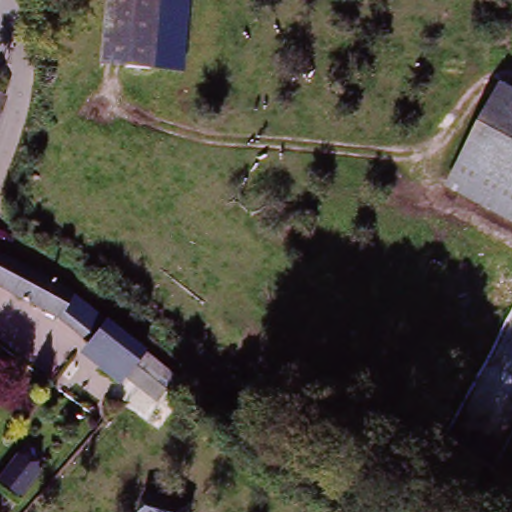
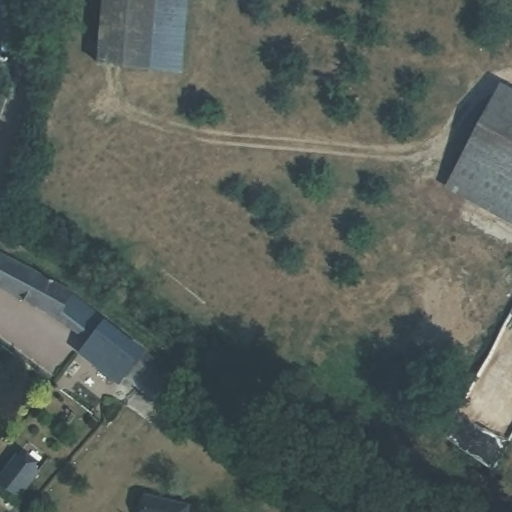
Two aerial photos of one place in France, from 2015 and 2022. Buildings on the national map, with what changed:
unchanged [(106,0),(156,0),(150,73),(101,69),(106,0)]
unchanged [(156,0),(186,0),(181,75),(150,73),(156,0)]
unchanged [(512,89),(512,217),(446,181),(499,81),(512,89)]
unchanged [(0,110),(0,95),(5,96),(0,110)]
unchanged [(100,371),(82,357),(91,345),(61,323),(0,288),(0,261),(2,257),(70,295),(147,355),(178,379),(166,393),(159,404),(127,381),(121,388),(100,371)]
unchanged [(20,499),(1,483),(19,460),(39,476),(20,499)]

